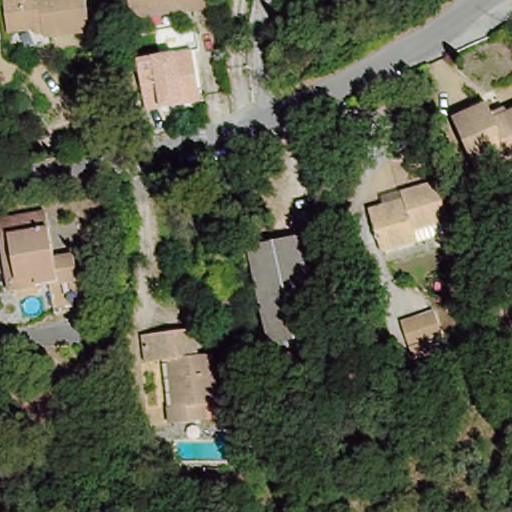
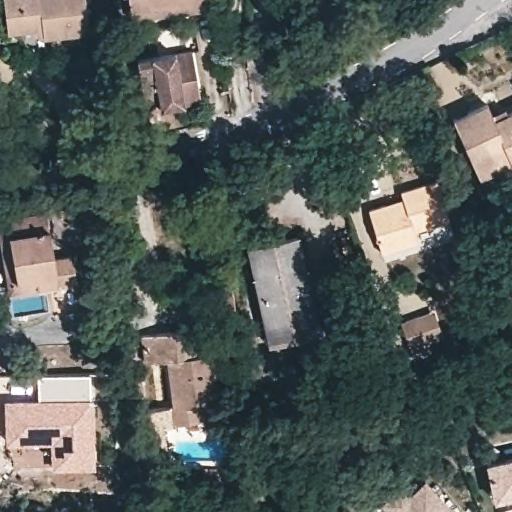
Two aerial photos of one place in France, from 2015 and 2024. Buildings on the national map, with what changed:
unchanged [(92,35),(44,44),(41,30),(8,36),(4,0),(88,0),(92,35)]
unchanged [(134,0),(210,0),(211,5),(191,6),(136,13),(134,0)]
unchanged [(202,102),(146,111),(137,59),(192,50),(202,102)]
unchanged [(495,124),(512,116),(512,167),(480,180),(455,125),(489,109),(495,124)]
unchanged [(450,219),(415,230),(419,241),(383,252),(370,211),(387,205),(388,210),(405,205),(402,192),(439,180),(450,219)]
unchanged [(44,228),(52,255),(61,290),(21,298),(11,242),(0,242),(0,217),(38,210),(44,228)]
unchanged [(318,329),(271,339),(251,242),(299,233),(318,329)]
unchanged [(77,256),(88,315),(58,321),(61,290),(52,255),(77,256)]
unchanged [(234,317),(209,320),(205,291),(231,288),(234,317)]
unchanged [(437,308),(447,341),(413,351),(402,320),(437,308)]
unchanged [(509,321),(512,320),(512,332),(509,321)]
unchanged [(205,355),(210,405),(198,406),(198,420),(167,423),(165,407),(171,406),(166,360),(141,362),(139,335),(183,331),(191,330),(192,339),(192,356),(205,355)]
new [(91,372),(93,396),(37,398),(36,373),(91,372)]
new [(37,398),(93,396),(96,466),(13,469),(4,435),(3,400),(37,398)]
new [(512,458),(512,495),(495,498),(487,463),(512,458)]
new [(409,496),(425,481),(453,512),(391,512),(383,502),(400,486),(409,496)]

